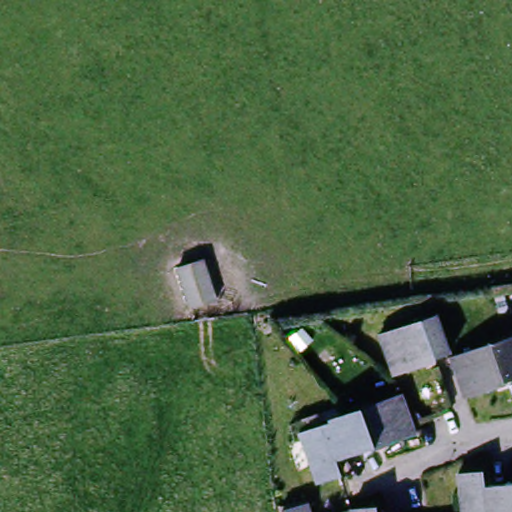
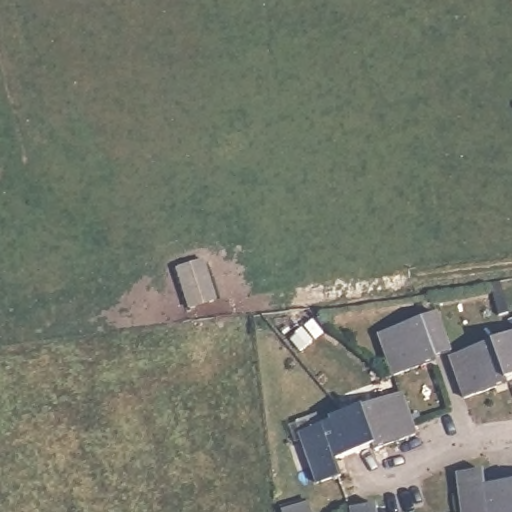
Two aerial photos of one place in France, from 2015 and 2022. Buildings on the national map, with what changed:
unchanged [(206,263),(218,305),(191,313),(179,271),(206,263)]
unchanged [(395,377),(381,335),(440,316),(442,323),(453,356),(452,357),(436,362),(436,364),(395,377)]
unchanged [(469,400),(468,400),(465,393),(454,359),(509,340),(512,348),(512,383),(508,385),(509,387),(469,400)]
unchanged [(512,340),(512,348),(509,340),(512,340)]
unchanged [(375,455),(374,452),(368,455),(359,457),(346,416),(399,398),(414,441),(375,455)]
unchanged [(339,464),(343,477),(321,485),(304,432),(334,422),(333,420),(346,416),(359,457),(349,461),(339,464)]
unchanged [(462,475),(485,472),(487,487),(499,486),(511,484),(512,491),(512,512),(467,512),(462,475)]
unchanged [(511,484),(512,484),(512,491),(511,484)]
unchanged [(356,510),(380,507),(381,512),(356,512),(356,510)]

